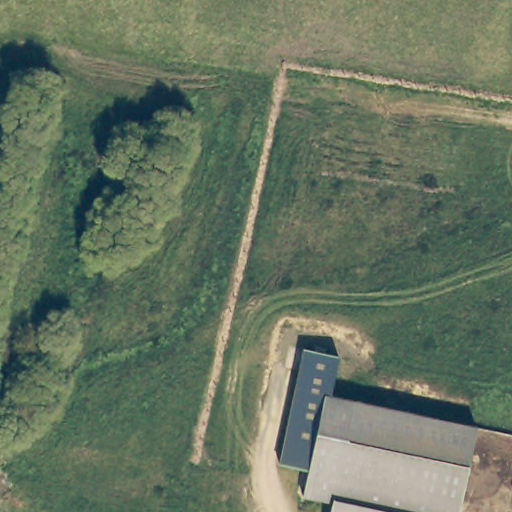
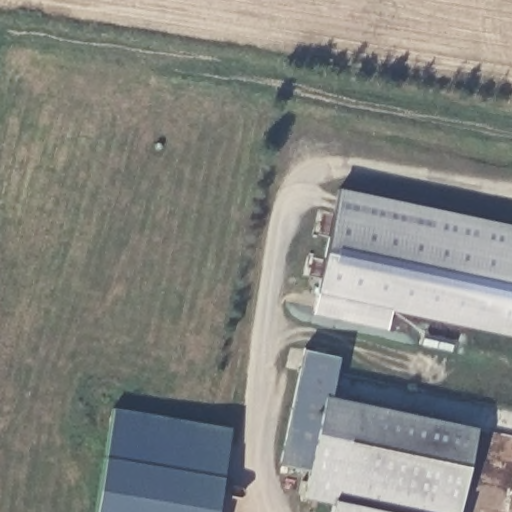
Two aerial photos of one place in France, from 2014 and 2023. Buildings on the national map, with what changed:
new [(391,310),(387,330),(312,314),(339,188),(512,225),(512,337),(391,310)]
unchanged [(341,359),(332,399),(310,474),(275,466),(306,352),(341,359)]
unchanged [(332,399),(478,432),(460,512),(330,512),(332,505),(303,498),(310,474),(332,399)]
new [(95,512),(110,410),(227,429),(215,512),(95,512)]

